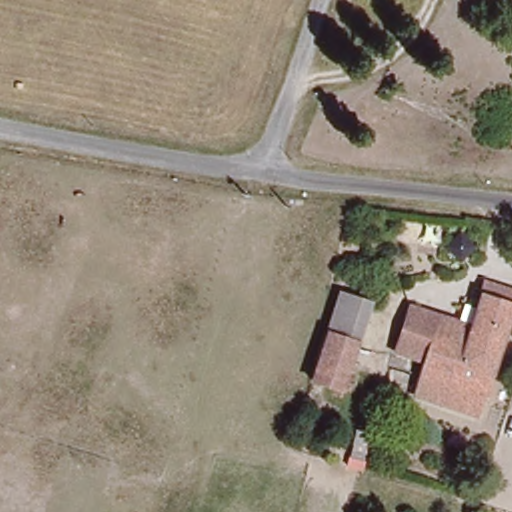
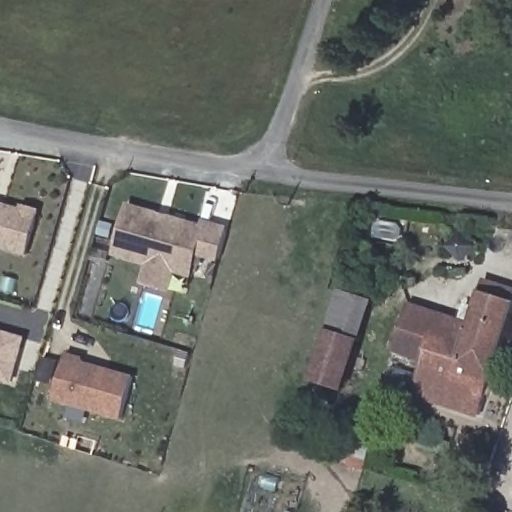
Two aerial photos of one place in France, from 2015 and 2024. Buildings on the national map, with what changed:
new [(29,256),(0,250),(0,202),(21,207),(22,204),(42,209),(29,256)]
new [(114,256),(128,203),(203,224),(204,220),(229,227),(220,263),(199,258),(194,277),(177,273),(172,292),(141,284),(147,265),(114,256)]
unchanged [(470,305),(485,308),(495,277),(508,281),(505,293),(512,295),(512,314),(483,416),(415,396),(424,362),(395,354),(408,306),(465,321),(470,305)]
unchanged [(338,295),(369,303),(357,344),(328,336),(338,295)]
new [(26,337),(12,383),(0,380),(0,330),(26,337)]
unchanged [(318,377),(328,336),(357,344),(346,385),(318,377)]
new [(135,376),(122,420),(54,401),(66,354),(85,358),(84,362),(135,376)]

